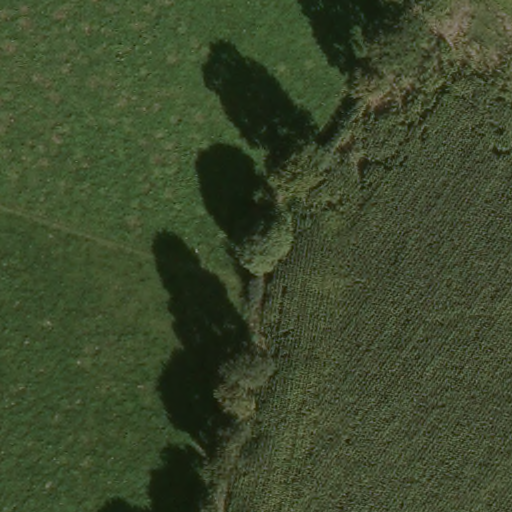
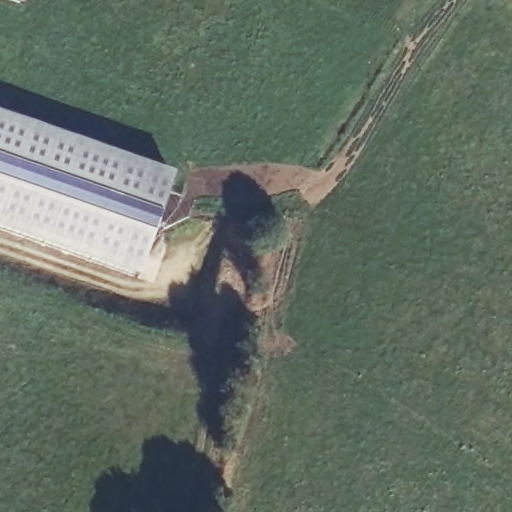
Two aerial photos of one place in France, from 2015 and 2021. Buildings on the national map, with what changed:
new [(140,277),(0,230),(0,116),(174,176),(140,277)]

